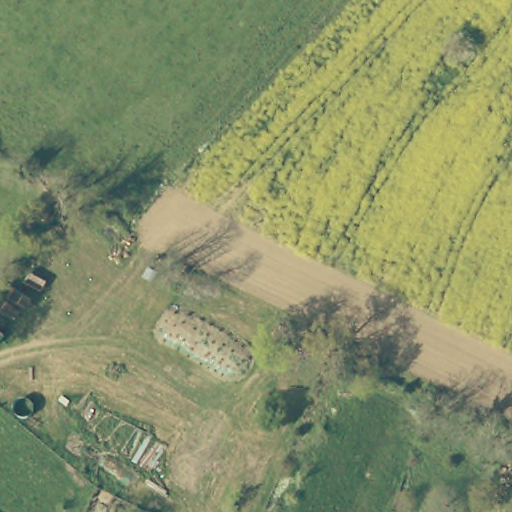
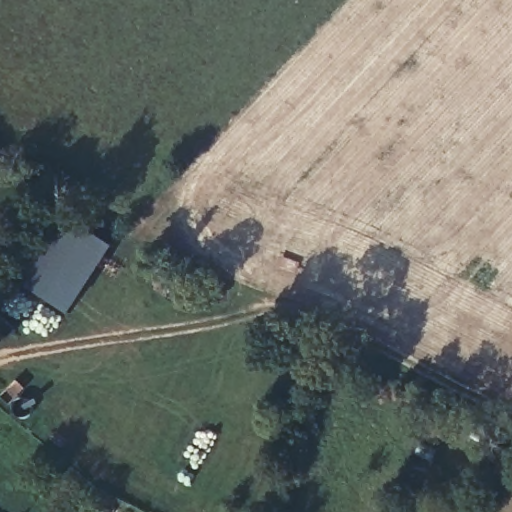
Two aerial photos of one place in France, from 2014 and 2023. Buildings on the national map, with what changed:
new [(20,284),(64,214),(116,247),(71,316),(20,284)]

